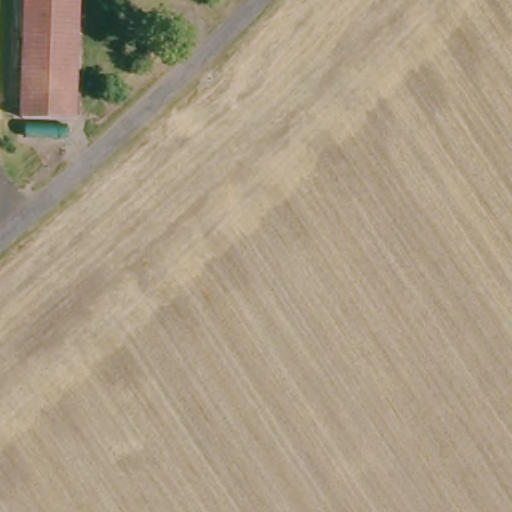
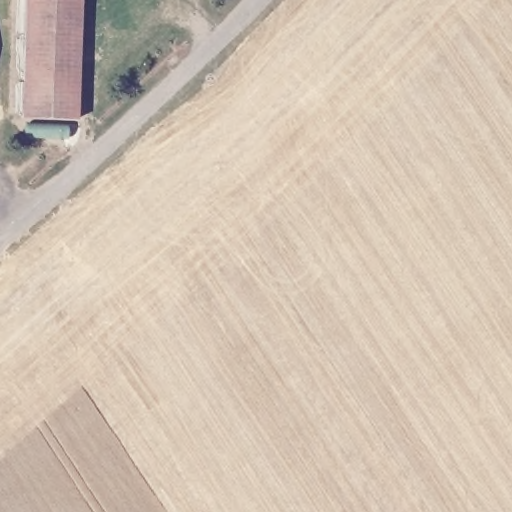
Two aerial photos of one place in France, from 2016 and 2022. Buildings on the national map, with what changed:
unchanged [(21,99),(21,0),(73,0),(73,99),(21,99)]

